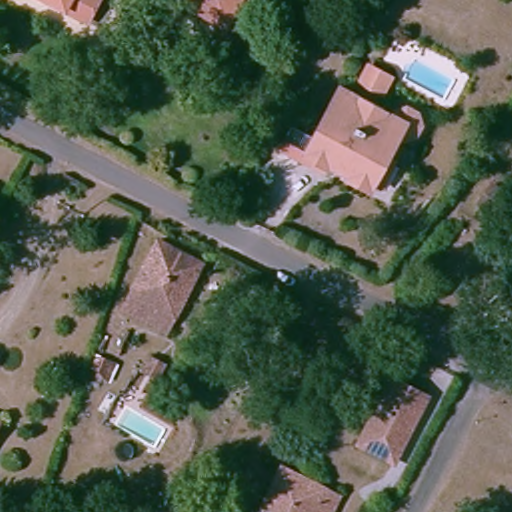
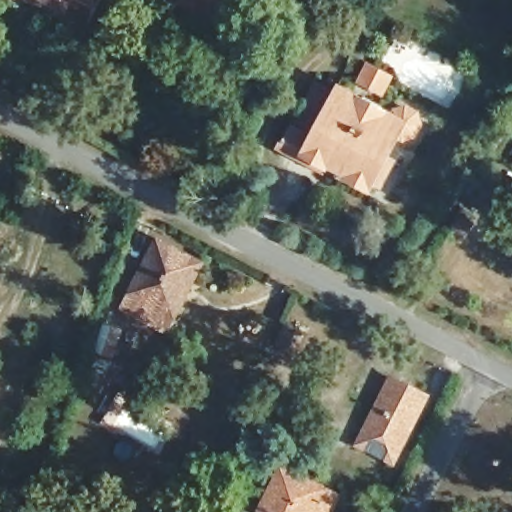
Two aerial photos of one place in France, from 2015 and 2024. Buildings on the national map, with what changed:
unchanged [(89,23),(49,0),(102,0),(89,23)]
unchanged [(191,0),(249,0),(235,25),(191,0)]
unchanged [(344,25),(328,57),(313,49),(330,19),(344,25)]
unchanged [(298,162),(275,148),(318,76),(338,88),(303,153),(298,162)]
unchanged [(356,182),(303,153),(338,88),(397,121),(401,114),(413,113),(421,117),(425,132),(417,144),(404,148),(399,146),(388,165),(380,178),(373,191),(356,182)]
unchanged [(475,191),(502,209),(490,227),(462,209),(475,191)]
unchanged [(133,294),(158,242),(204,265),(177,325),(173,333),(150,322),(125,309),(133,294)]
unchanged [(433,402),(398,467),(361,448),(395,383),(433,402)]
unchanged [(315,512),(314,512),(271,512),(262,508),(283,468),(325,489),(336,495),(327,512),(315,512)]

